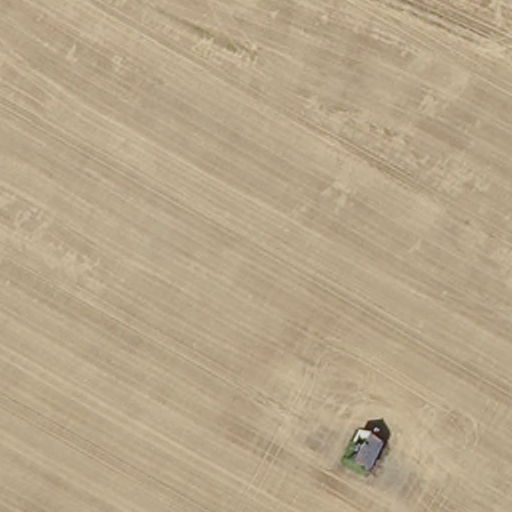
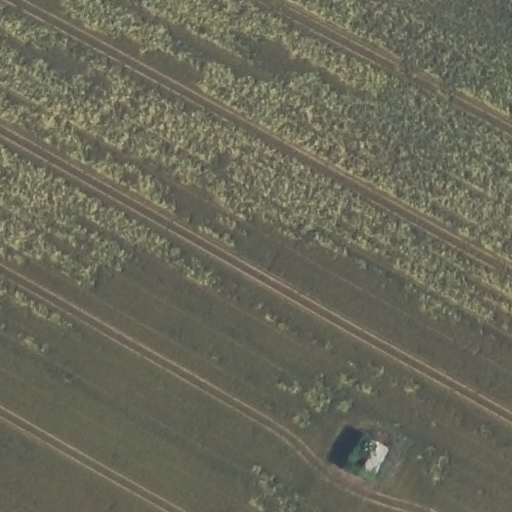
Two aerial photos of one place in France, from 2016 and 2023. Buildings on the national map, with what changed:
unchanged [(370,478),(348,470),(360,436),(381,444),(370,478)]

